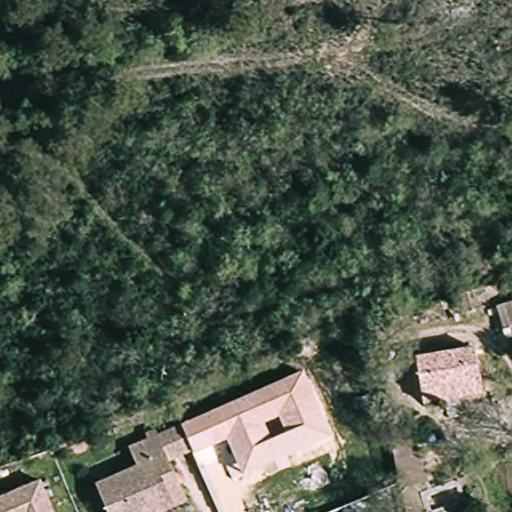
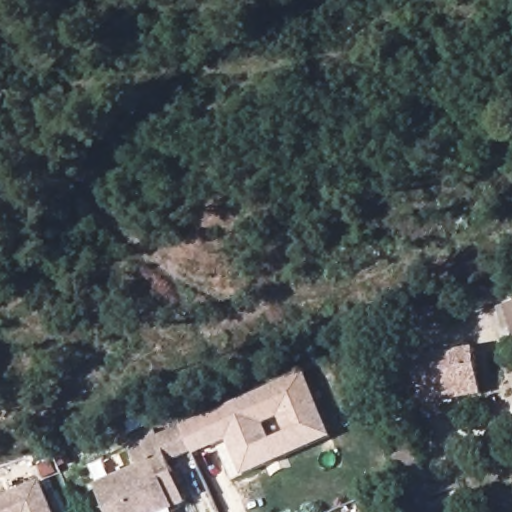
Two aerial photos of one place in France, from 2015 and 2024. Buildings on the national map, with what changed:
unchanged [(496,304),(512,299),(512,351),(508,352),(496,304)]
unchanged [(482,388),(420,402),(411,361),(474,347),(482,388)]
unchanged [(308,375),(326,421),(290,436),(279,410),(255,420),(266,445),(241,455),(233,437),(215,444),(204,417),(308,375)]
unchanged [(233,437),(241,455),(266,445),(290,436),(326,421),(333,438),(242,475),(235,458),(222,463),(215,444),(233,437)]
unchanged [(172,506),(174,512),(107,512),(97,486),(139,469),(131,450),(159,439),(187,428),(198,456),(170,467),(172,472),(184,501),(172,506)]
unchanged [(397,491),(388,438),(415,433),(426,486),(397,491)]
unchanged [(44,481),(56,512),(0,512),(0,498),(44,481)]

